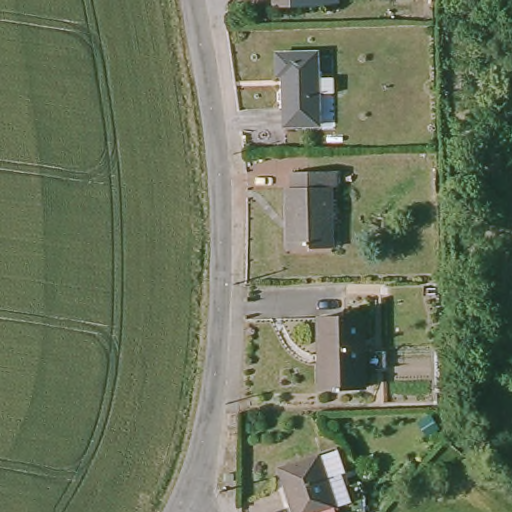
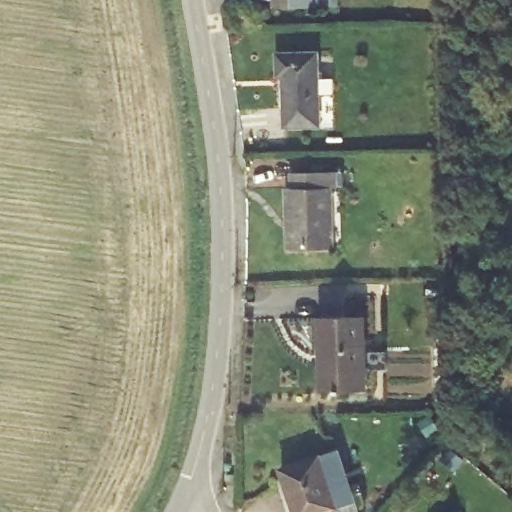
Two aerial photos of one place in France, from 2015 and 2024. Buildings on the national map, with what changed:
unchanged [(274,8),(273,0),(335,0),(335,9),(274,8)]
unchanged [(319,55),(317,126),(284,124),(285,75),(280,75),(280,54),(319,55)]
unchanged [(292,176),(334,177),(334,192),(330,192),(330,252),(288,251),(287,190),(291,189),(292,176)]
unchanged [(362,314),(365,383),(325,385),(322,316),(362,314)]
unchanged [(314,462),(332,456),(337,472),(335,478),(342,507),(326,512),(287,512),(275,473),(314,462)]

